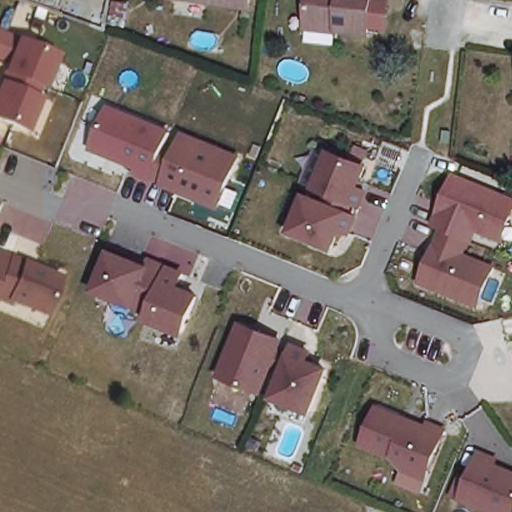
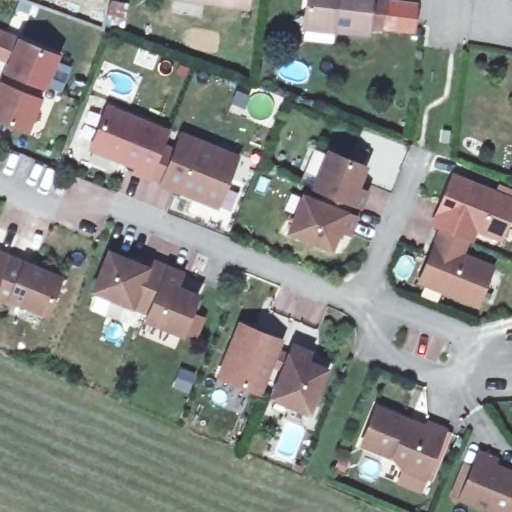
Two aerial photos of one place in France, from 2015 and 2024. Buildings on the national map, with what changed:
unchanged [(242,1),(235,0),(242,0),(242,1)]
unchanged [(304,25),(305,15),(307,0),(370,0),(367,31),(335,27),(335,29),(304,25)]
unchanged [(0,124),(0,75),(5,60),(0,59),(0,31),(57,52),(28,133),(0,124)]
unchanged [(135,177),(137,172),(90,152),(106,105),(170,127),(165,141),(177,145),(180,131),(239,152),(218,211),(135,177)]
unchanged [(364,182),(373,187),(365,208),(315,195),(323,153),(369,167),(364,182)]
unchanged [(475,233),(467,254),(495,263),(478,309),(417,284),(436,229),(430,227),(451,172),(512,195),(512,218),(502,244),(475,233)]
unchanged [(348,236),(340,234),(332,252),(285,236),(299,195),(358,213),(348,236)]
unchanged [(183,276),(180,284),(202,292),(182,337),(145,324),(145,316),(89,294),(113,248),(183,276)]
unchanged [(0,302),(0,253),(61,273),(47,319),(0,302)]
unchanged [(277,336),(257,390),(222,378),(238,322),(277,336)]
unchanged [(318,348),(315,356),(330,365),(308,414),(275,403),(296,338),(318,348)]
unchanged [(447,431),(429,473),(355,443),(375,404),(447,431)]
unchanged [(512,512),(485,512),(461,502),(479,453),(512,468),(512,512)]

